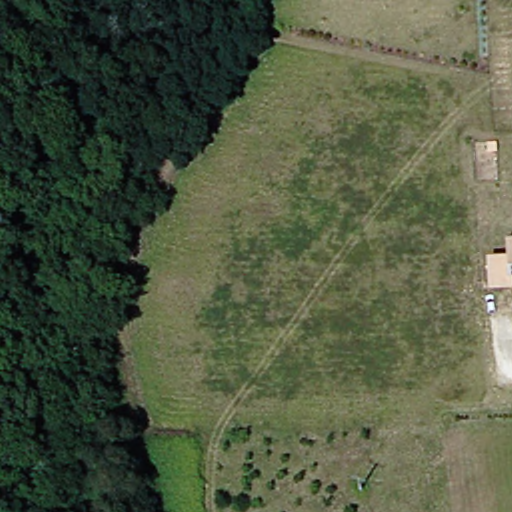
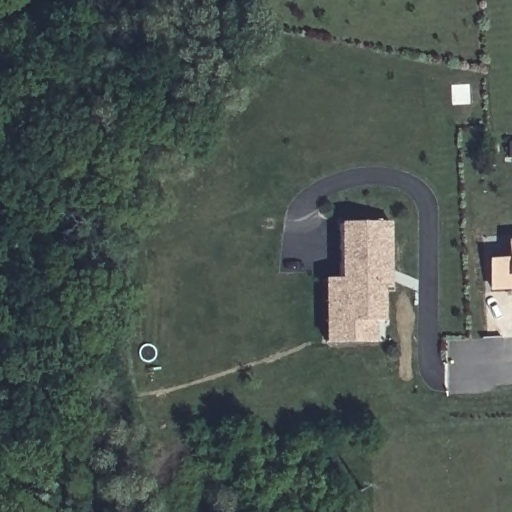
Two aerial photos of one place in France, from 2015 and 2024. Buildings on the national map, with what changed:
new [(392,224),(393,291),(383,290),(383,326),(341,326),(339,224),(392,224)]
unchanged [(512,276),(510,276),(510,286),(489,287),(487,261),(507,260),(506,243),(512,243),(512,276)]

